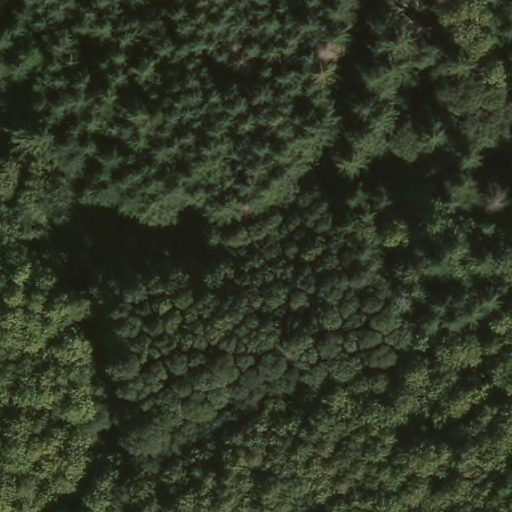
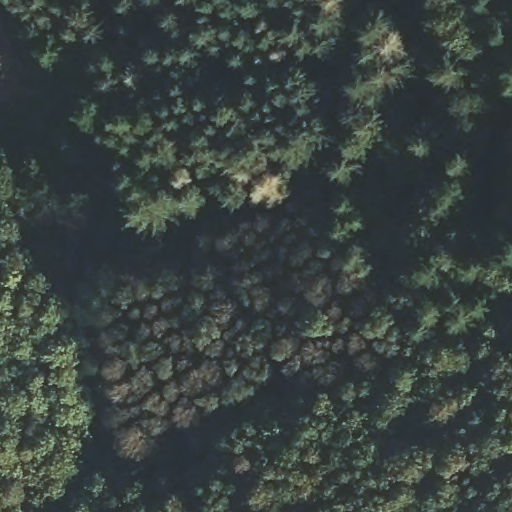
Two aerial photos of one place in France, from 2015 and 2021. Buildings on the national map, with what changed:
unchanged [(142,224),(168,227),(168,225),(176,227),(180,231),(180,236),(179,240),(178,244),(175,246),(169,245),(169,249),(139,245),(142,224)]

